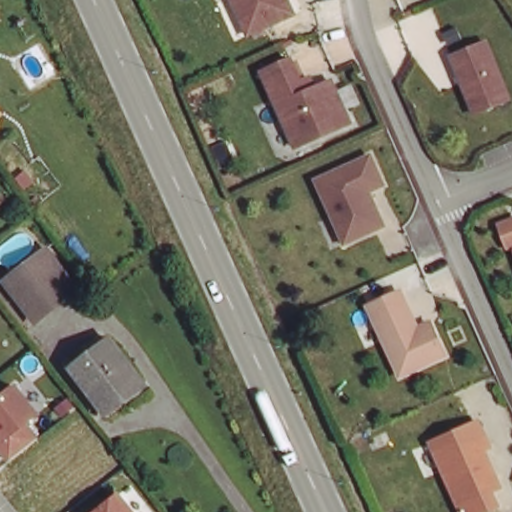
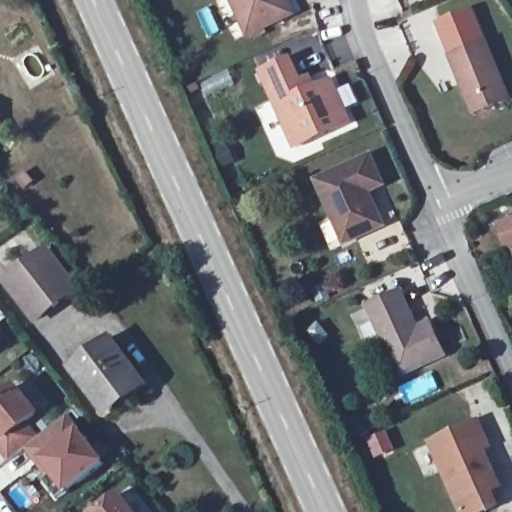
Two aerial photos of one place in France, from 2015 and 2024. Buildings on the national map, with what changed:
unchanged [(266,26),(268,32),(256,37),(254,32),(249,35),(233,0),(288,0),(294,13),(266,26)]
unchanged [(468,94),(451,54),(461,49),(485,39),(509,95),(504,97),(488,105),(475,110),(468,94)]
unchanged [(351,120),(296,145),(263,69),(291,55),(301,78),(311,74),(316,85),(333,78),(351,120)]
new [(0,146),(0,121),(3,125),(15,140),(3,150),(0,146)]
unchanged [(376,227),(346,240),(318,176),(373,153),(385,182),(370,189),(374,197),(384,224),(376,227)]
unchanged [(76,286),(35,318),(2,278),(44,245),(76,286)]
unchanged [(417,325),(430,320),(444,351),(428,359),(400,372),(368,303),(377,299),(400,288),(417,325)]
unchanged [(144,379),(108,409),(71,366),(110,335),(144,379)]
unchanged [(22,416),(34,432),(26,438),(6,453),(0,445),(0,432),(1,431),(0,429),(0,389),(13,379),(34,407),(22,416)]
new [(26,438),(34,432),(38,437),(69,414),(78,427),(105,462),(65,492),(58,498),(43,480),(45,478),(25,450),(8,462),(0,453),(0,445),(6,453),(26,438)]
unchanged [(496,501),(471,512),(462,512),(431,437),(472,420),(478,416),(489,442),(483,445),(498,482),(489,486),(496,501)]
new [(0,432),(0,429),(1,431),(0,432)]
unchanged [(93,512),(119,491),(136,512),(93,512)]

